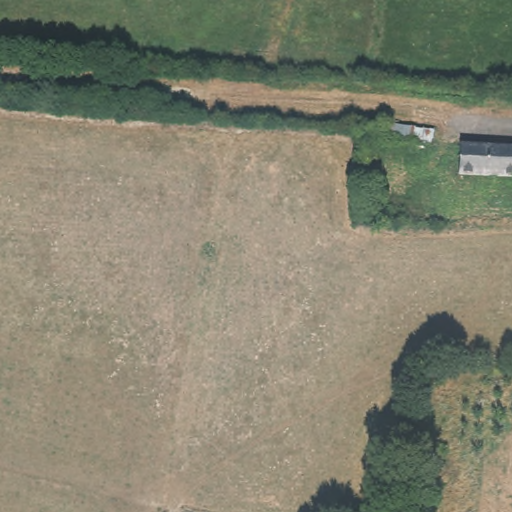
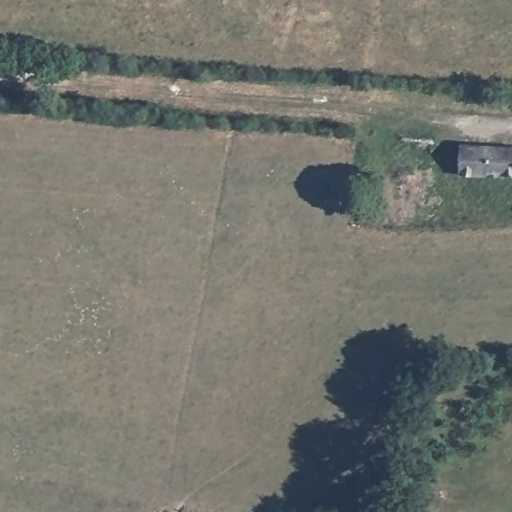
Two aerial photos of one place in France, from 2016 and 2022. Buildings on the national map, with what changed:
unchanged [(512,184),(464,182),(465,151),(512,153),(512,184)]

